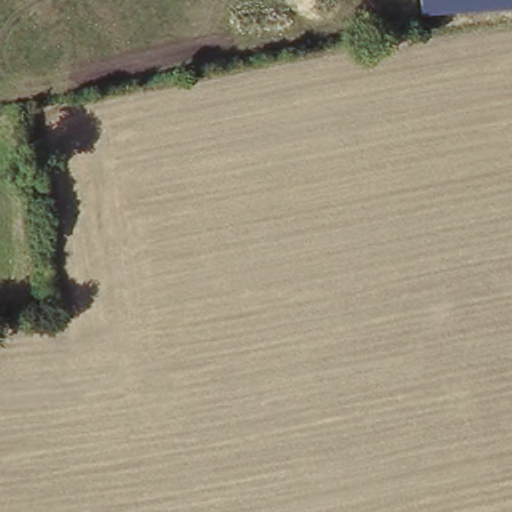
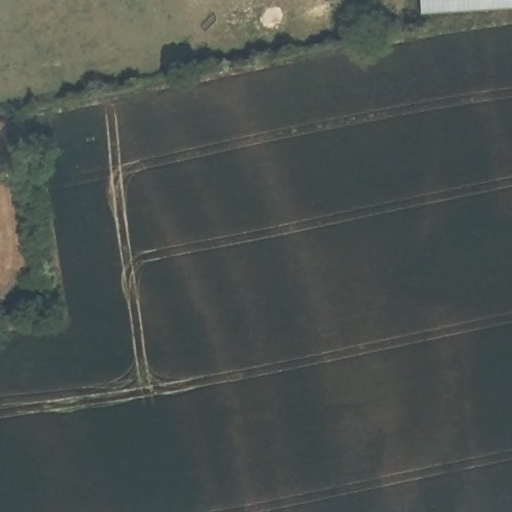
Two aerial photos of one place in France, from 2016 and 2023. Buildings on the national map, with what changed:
unchanged [(422,17),(421,0),(512,0),(512,12),(422,17)]

